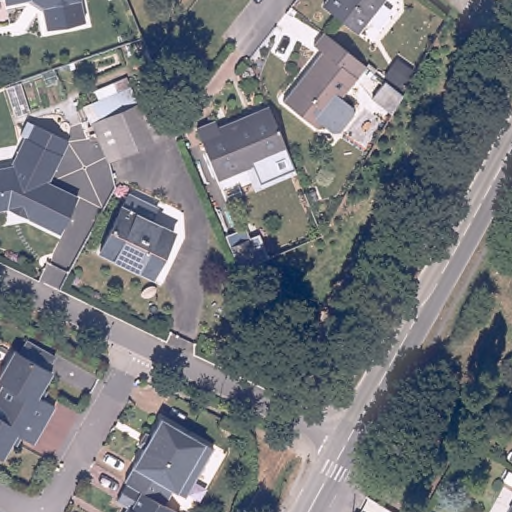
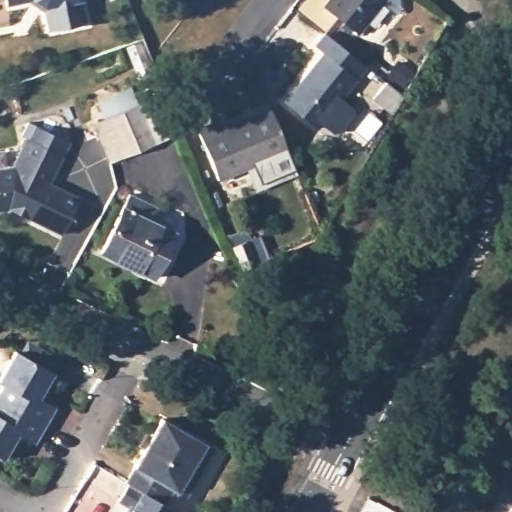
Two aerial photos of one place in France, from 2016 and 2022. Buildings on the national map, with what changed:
unchanged [(6,5),(5,0),(29,0),(6,5)]
unchanged [(86,22),(48,30),(43,6),(33,0),(81,0),(86,22)]
unchanged [(332,0),(385,0),(358,34),(326,7),(332,0)]
unchanged [(368,67),(343,99),(355,108),(356,115),(342,132),(335,134),(323,124),(319,129),(286,102),(325,52),(317,46),(327,34),(368,67)]
unchanged [(382,82),(400,97),(390,115),(369,98),(382,82)]
unchanged [(109,162),(93,125),(106,119),(99,103),(128,90),(135,106),(151,100),(167,137),(109,162)]
unchanged [(285,152),(215,181),(194,130),(212,122),(215,129),(266,109),(285,152)]
unchanged [(30,125),(66,142),(49,182),(78,197),(60,234),(8,209),(0,210),(0,168),(11,165),(30,125)]
unchanged [(152,278),(100,254),(122,208),(174,233),(152,278)]
unchanged [(240,270),(230,246),(245,240),(255,263),(240,270)]
unchanged [(55,411),(44,430),(0,405),(0,395),(3,390),(0,388),(0,381),(15,355),(20,358),(26,345),(55,361),(47,375),(52,377),(43,393),(47,396),(42,405),(55,411)]
unchanged [(2,463),(0,462),(0,405),(44,430),(34,449),(21,441),(16,450),(11,447),(2,463)]
unchanged [(133,471),(143,453),(137,450),(144,438),(150,442),(160,423),(212,453),(185,501),(172,495),(164,510),(140,496),(126,488),(124,487),(124,486),(133,471)]
unchanged [(126,488),(140,496),(164,510),(168,512),(128,512),(116,505),(126,488)]

